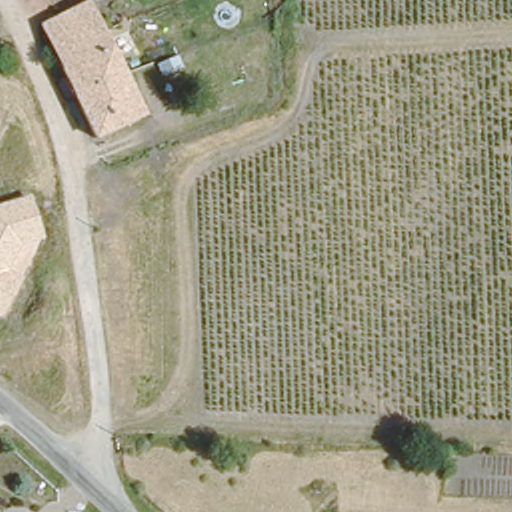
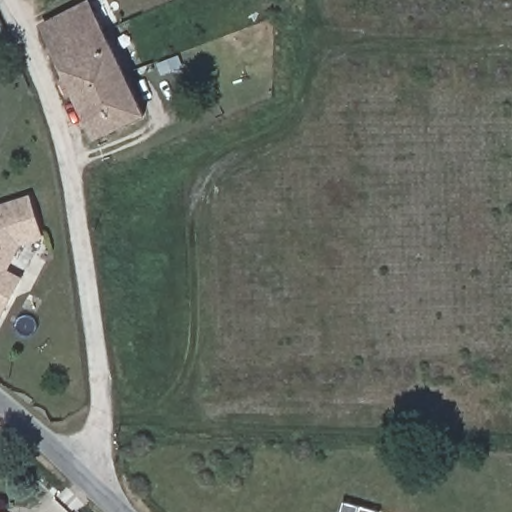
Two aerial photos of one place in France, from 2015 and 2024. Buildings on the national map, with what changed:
unchanged [(43,24),(61,15),(91,0),(92,0),(145,111),(97,134),(53,44),(43,24)]
unchanged [(43,239),(22,246),(8,272),(22,279),(0,320),(0,206),(30,198),(43,239)]
unchanged [(1,512),(0,512),(0,511),(1,512)]

